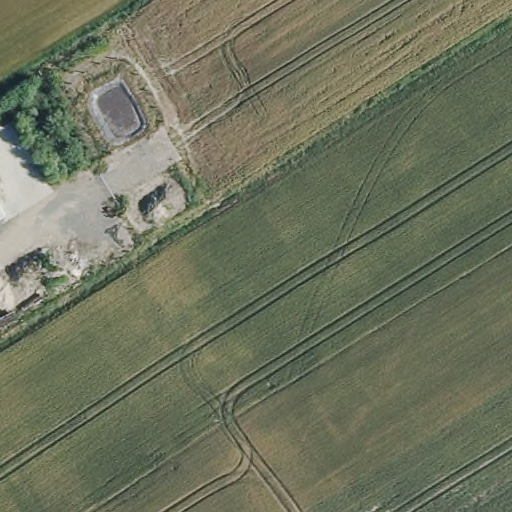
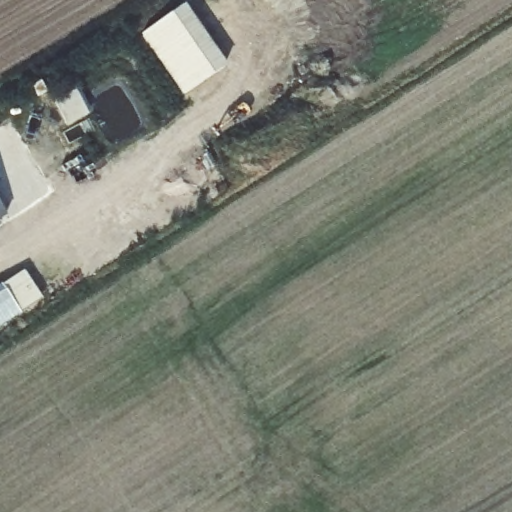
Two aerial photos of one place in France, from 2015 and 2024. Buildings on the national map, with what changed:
new [(139,34),(184,4),(226,64),(182,94),(139,34)]
new [(88,114),(66,126),(53,103),(75,90),(88,114)]
unchanged [(8,206),(0,211),(0,193),(8,206)]
new [(23,272),(41,299),(0,327),(0,286),(23,272)]

